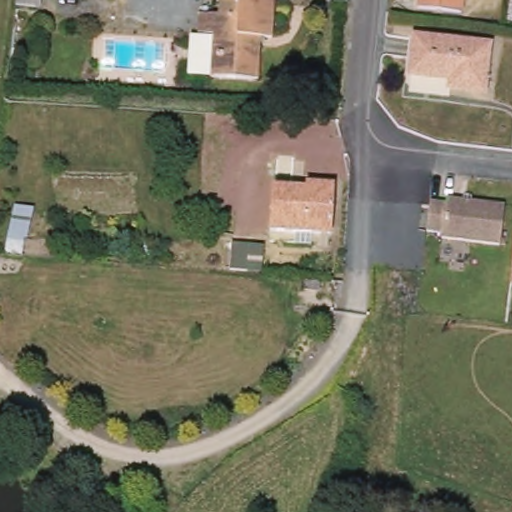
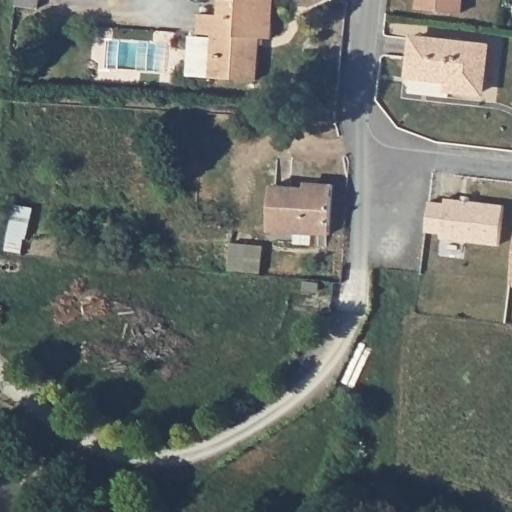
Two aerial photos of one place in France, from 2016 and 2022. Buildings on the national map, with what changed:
unchanged [(217,15),(218,0),(275,0),(273,39),(262,38),(261,79),(220,77),(220,36),(200,35),(201,14),(217,15)]
unchanged [(421,8),(422,0),(463,0),(461,11),(421,8)]
unchanged [(200,35),(220,36),(220,77),(186,75),(189,35),(200,35)]
unchanged [(489,44),(485,91),(456,88),(456,77),(415,74),(418,36),(489,44)]
unchanged [(318,189),(318,184),(336,185),(333,235),(273,232),(276,186),(318,189)]
unchanged [(445,205),(445,198),(506,206),(501,252),(440,246),(441,233),(423,231),(426,204),(445,205)]
unchanged [(260,241),(258,268),(245,266),(246,241),(260,241)]
unchanged [(512,278),(512,290),(511,290),(512,278)]

